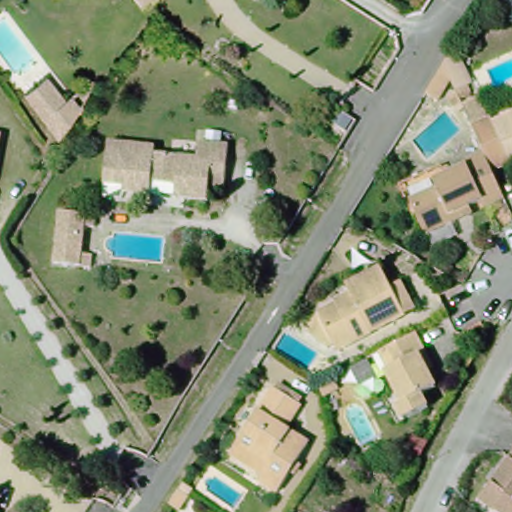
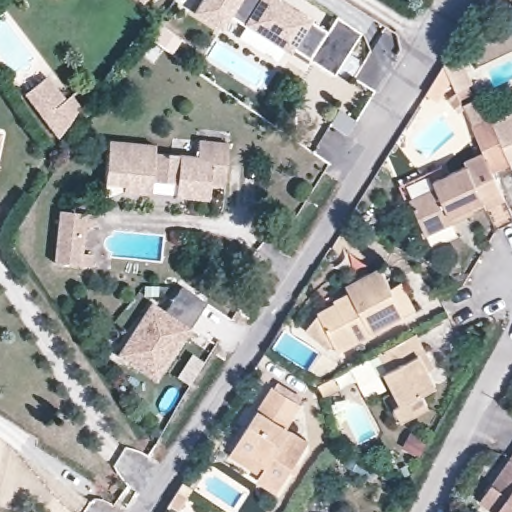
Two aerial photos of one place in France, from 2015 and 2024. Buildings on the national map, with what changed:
new [(327,34),(335,19),(361,35),(333,77),(310,63),(307,66),(231,18),(222,33),(193,15),(203,0),(272,0),(327,34)]
unchanged [(470,120),(460,125),(455,114),(451,117),(447,104),(440,112),(427,105),(448,71),(459,55),(477,97),(462,103),(470,120)]
unchanged [(23,99),(41,80),(75,113),(56,132),(23,99)]
unchanged [(493,123),(512,115),(512,166),(510,166),(493,123)]
unchanged [(220,185),(206,183),(202,197),(176,192),(175,185),(151,179),(147,193),(121,189),(121,183),(101,180),(110,134),(155,143),(155,148),(195,156),(197,138),(227,143),(220,185)]
unchanged [(445,226),(423,234),(410,203),(435,193),(431,184),(461,170),(460,167),(482,157),(495,185),(476,195),(480,204),(468,211),(470,217),(445,226)]
unchanged [(53,259),(60,208),(93,211),(92,227),(82,225),(79,250),(88,251),(87,265),(53,259)]
unchanged [(321,315),(332,307),(330,302),(351,294),(346,286),(380,270),(393,289),(401,284),(417,314),(408,319),(340,350),(321,315)]
new [(151,304),(165,314),(182,287),(206,303),(156,378),(119,354),(151,304)]
unchanged [(425,353),(433,368),(426,373),(435,388),(420,397),(426,411),(405,423),(397,406),(401,403),(385,372),(388,370),(380,353),(387,349),(415,335),(425,353)]
unchanged [(232,444),(271,387),(274,388),(278,382),(303,397),(299,404),(300,404),(286,429),(305,444),(275,490),(254,478),(259,471),(226,452),(232,444)]
new [(419,457),(402,447),(410,432),(427,443),(419,457)]
unchanged [(512,456),(512,512),(506,512),(482,494),(512,456)]
unchanged [(196,497),(186,512),(181,512),(171,505),(182,488),(196,497)]

